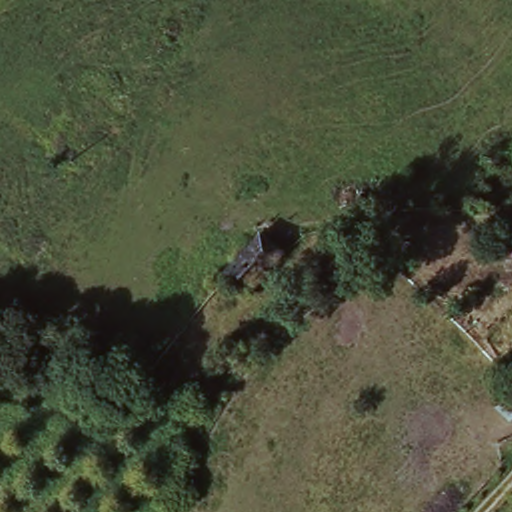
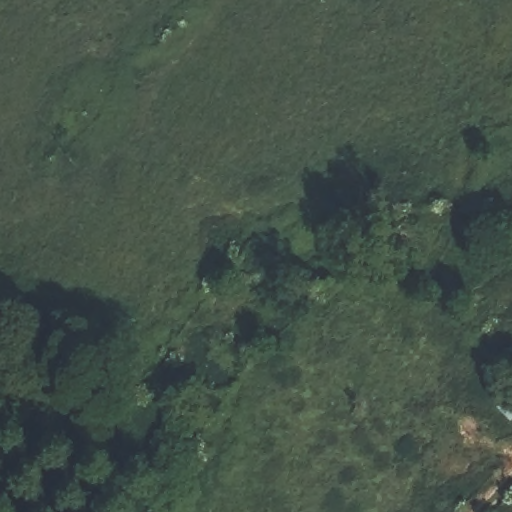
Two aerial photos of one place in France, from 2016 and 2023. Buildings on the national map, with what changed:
unchanged [(289,255),(250,295),(229,274),(267,233),(289,255)]

